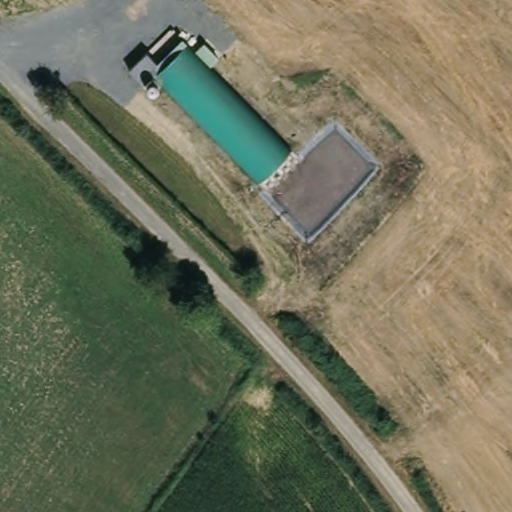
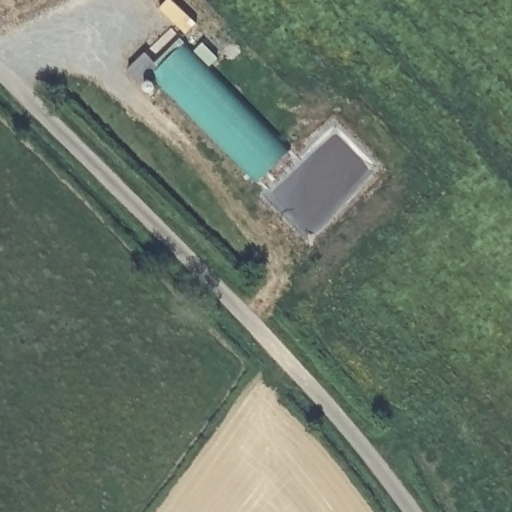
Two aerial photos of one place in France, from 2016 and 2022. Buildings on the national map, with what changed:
unchanged [(155,78),(147,86),(133,71),(147,56),(161,69),(188,41),(292,146),(259,182),(155,78)]

